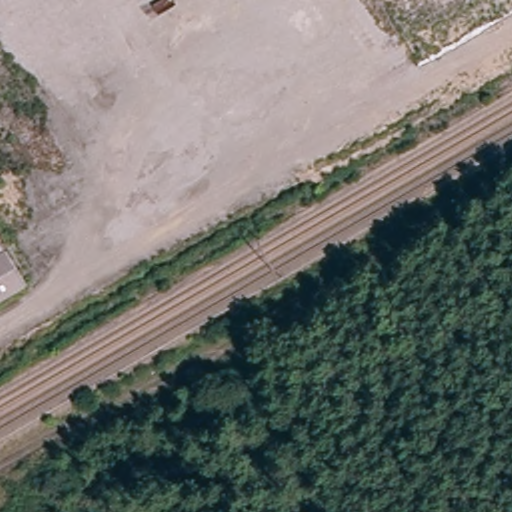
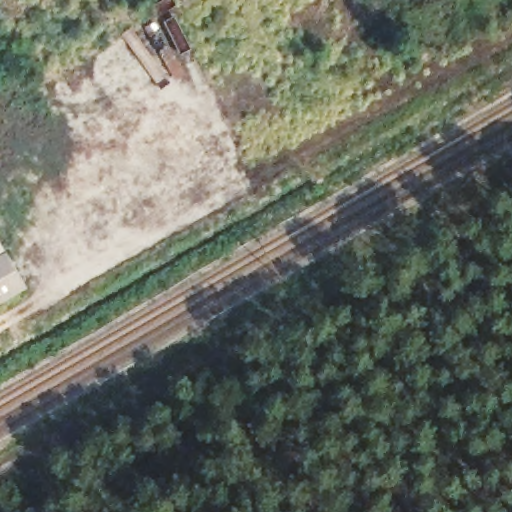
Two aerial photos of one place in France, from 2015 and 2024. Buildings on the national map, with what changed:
unchanged [(24,286),(0,299),(0,249),(24,286)]

